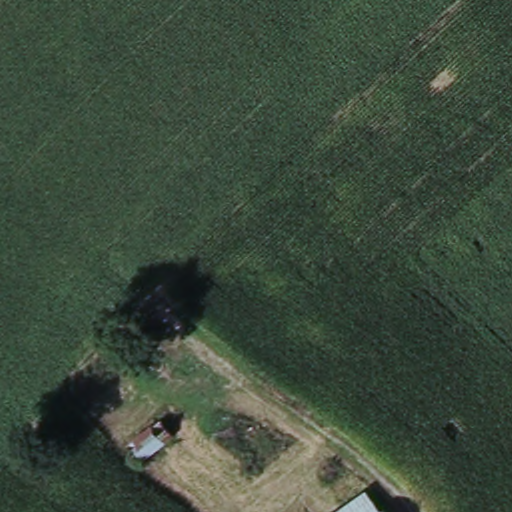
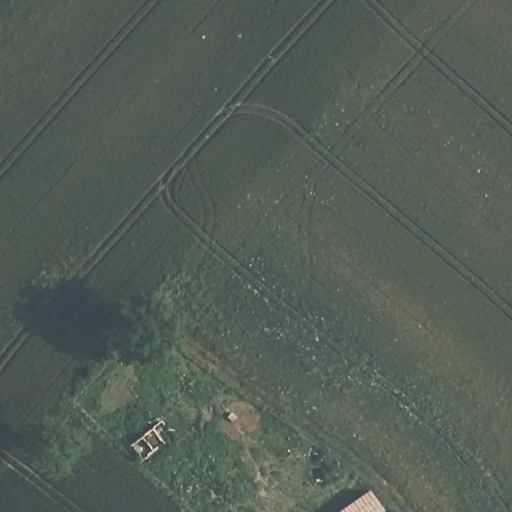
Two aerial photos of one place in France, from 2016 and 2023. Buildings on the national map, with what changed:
unchanged [(161,414),(175,430),(143,454),(131,439),(161,414)]
unchanged [(378,510),(375,512),(324,512),(361,486),(378,510)]
unchanged [(375,512),(378,510),(381,507),(384,512),(375,512)]

